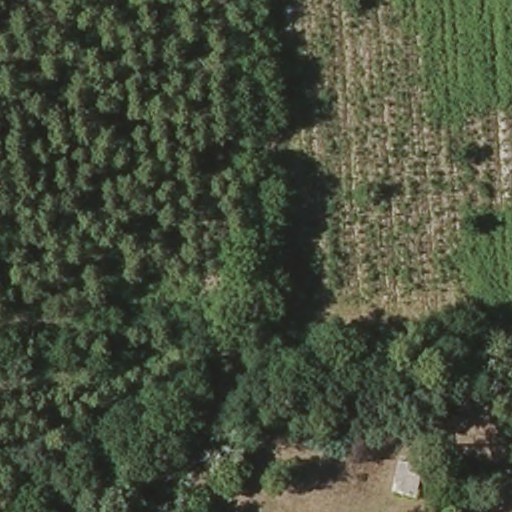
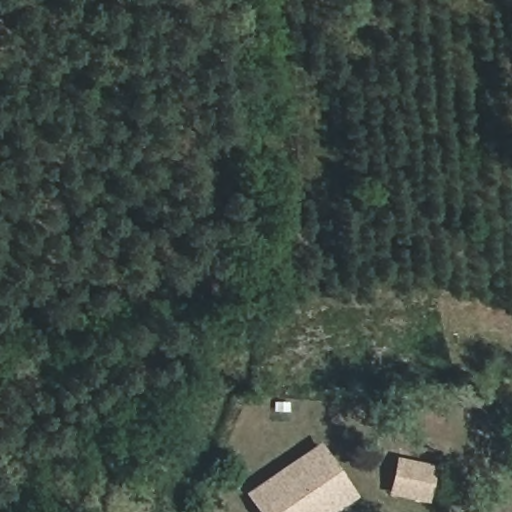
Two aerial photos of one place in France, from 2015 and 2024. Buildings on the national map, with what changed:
new [(262,512),(249,493),(321,445),(355,495),(329,512),(262,512)]
unchanged [(426,465),(418,500),(389,495),(396,458),(426,465)]

